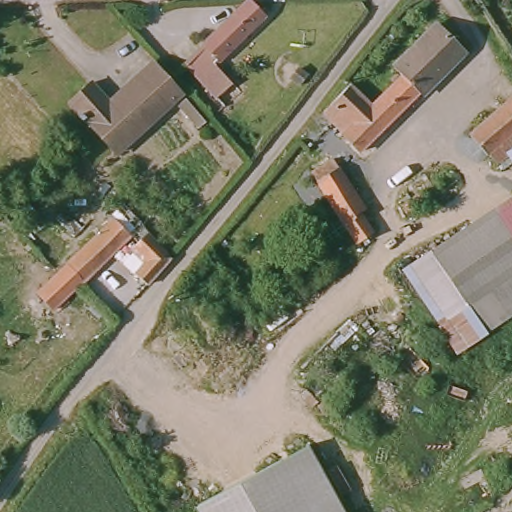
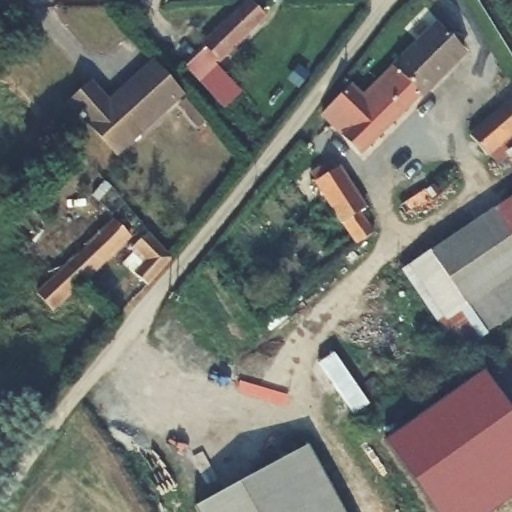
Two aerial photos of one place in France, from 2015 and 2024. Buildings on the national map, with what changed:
unchanged [(217,62),(213,65),(237,92),(224,103),(217,109),(179,65),(202,45),(251,1),(267,18),(217,62)]
unchanged [(345,90),(366,109),(397,76),(390,69),(430,25),(462,51),(421,97),(417,94),(360,154),(321,117),(345,90)]
new [(397,76),(366,109),(357,101),(390,69),(397,76)]
unchanged [(68,110),(90,90),(108,110),(152,71),(179,103),(112,162),(68,110)]
unchanged [(512,157),(505,163),(494,150),(492,151),(474,129),(512,97),(512,157)]
unchanged [(340,170),(368,219),(362,221),(374,242),(369,244),(355,255),(315,183),(340,170)]
unchanged [(512,272),(437,323),(400,271),(512,194),(512,272)]
unchanged [(110,222),(130,243),(42,325),(22,303),(110,222)]
unchanged [(169,267),(147,293),(145,295),(130,282),(142,270),(128,256),(144,241),(169,267)]
unchanged [(432,327),(437,323),(512,273),(512,316),(454,356),(432,327)]
new [(318,364),(334,353),(369,404),(353,415),(318,364)]
new [(512,411),(512,499),(494,512),(436,512),(385,441),(484,371),(512,411)]
unchanged [(346,512),(199,512),(195,506),(309,446),(346,512)]

